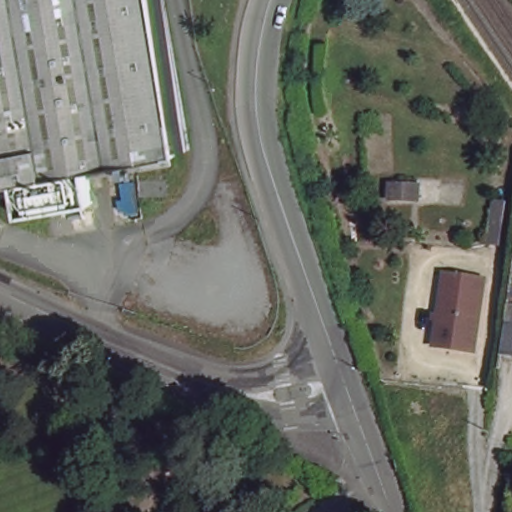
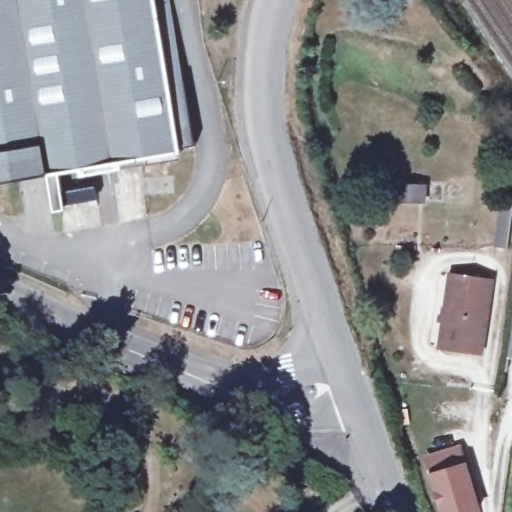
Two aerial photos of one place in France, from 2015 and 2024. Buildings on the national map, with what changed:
unchanged [(178,151),(93,165),(19,177),(0,181),(0,0),(153,0),(178,151)]
unchanged [(93,165),(98,199),(25,210),(19,177),(93,165)]
unchanged [(423,195),(422,210),(391,209),(392,195),(423,195)]
unchanged [(509,207),(505,253),(493,251),(497,206),(509,207)]
unchanged [(489,281),(482,355),(440,350),(448,276),(489,281)]
unchanged [(512,353),(501,352),(506,321),(512,322),(512,353)]
demolished [(512,345),(512,366),(509,365),(512,345)]
new [(481,512),(439,512),(428,472),(423,456),(461,445),(467,462),(481,512)]

